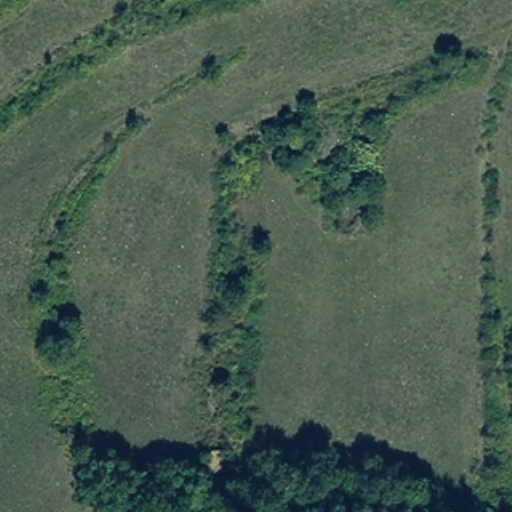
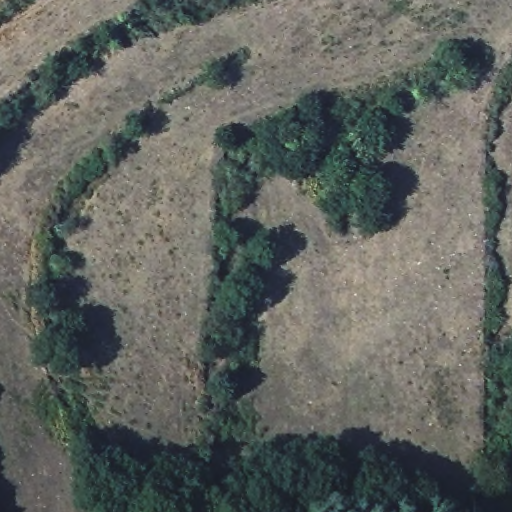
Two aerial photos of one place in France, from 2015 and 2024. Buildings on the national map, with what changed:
unchanged [(223,471),(202,473),(203,450),(223,451),(223,471)]

